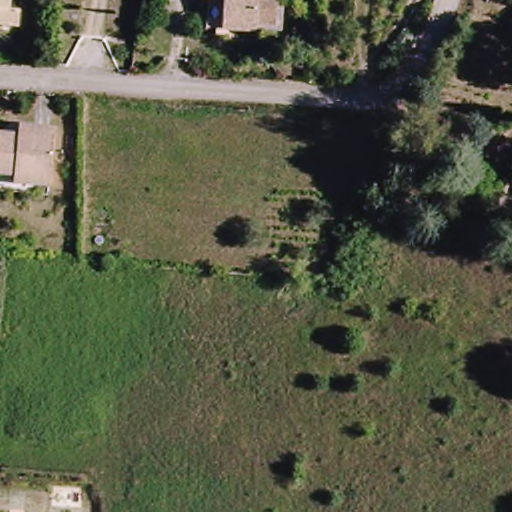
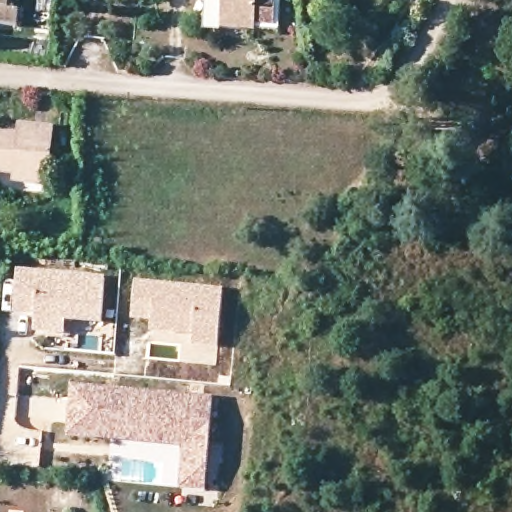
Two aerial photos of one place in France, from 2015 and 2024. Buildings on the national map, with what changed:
unchanged [(14,10),(14,30),(0,28),(0,0),(8,0),(7,9),(14,10)]
unchanged [(208,24),(210,0),(262,0),(260,29),(208,24)]
unchanged [(19,124),(55,126),(51,184),(15,181),(15,174),(0,172),(0,131),(18,133),(19,124)]
new [(104,278),(102,325),(67,322),(65,336),(34,334),(36,318),(14,316),(17,271),(104,278)]
new [(222,289),(218,348),(192,347),(194,336),(151,334),(152,323),(131,321),(134,282),(222,289)]
new [(214,396),(206,491),(180,489),(182,448),(67,438),(70,385),(214,396)]

